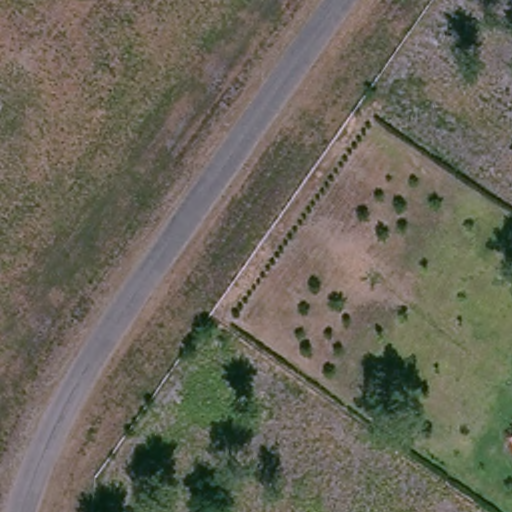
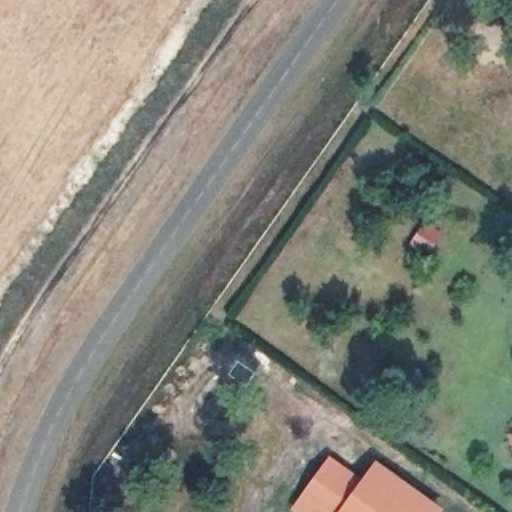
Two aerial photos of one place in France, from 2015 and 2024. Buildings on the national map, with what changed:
new [(362,478),(337,512),(291,512),(289,510),(329,455),(362,478)]
new [(375,460),(444,509),(441,512),(337,512),(362,478),(375,460)]

